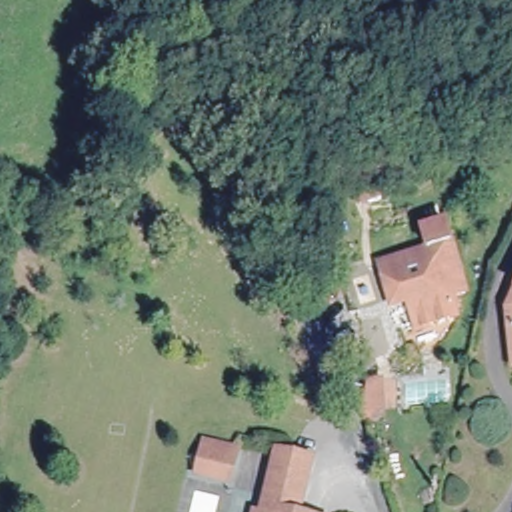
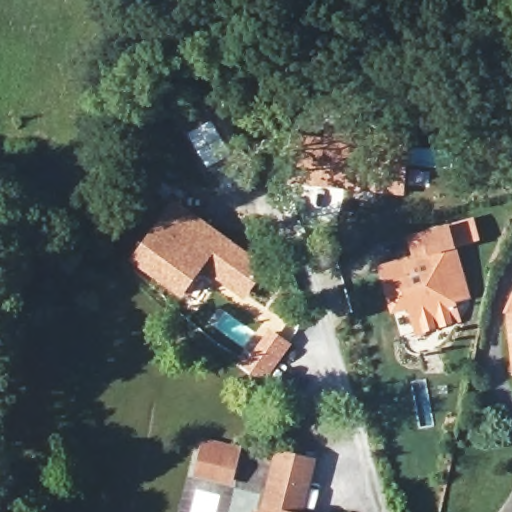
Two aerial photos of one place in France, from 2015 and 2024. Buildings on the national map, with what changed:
new [(175,287),(133,257),(172,201),(261,262),(243,288),(202,259),(181,291),(175,287)]
unchanged [(468,287),(454,291),(460,310),(417,322),(410,297),(393,302),(381,257),(430,244),(424,224),(449,217),(468,287)]
unchanged [(510,372),(504,315),(512,299),(512,372),(510,372)]
new [(252,359),(272,330),(288,340),(263,376),(248,366),(242,361),(246,355),(252,359)]
unchanged [(239,452),(232,482),(200,475),(207,446),(239,452)]
unchanged [(261,507),(274,448),(288,452),(307,457),(293,512),(251,512),(253,506),(261,507)]

